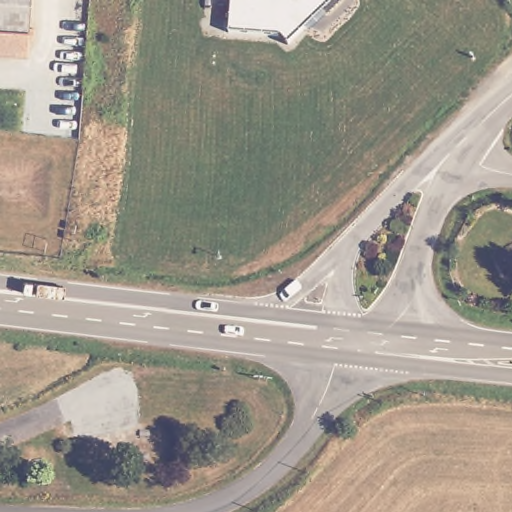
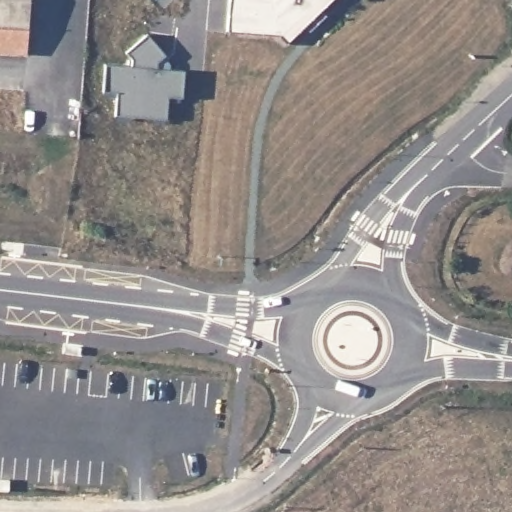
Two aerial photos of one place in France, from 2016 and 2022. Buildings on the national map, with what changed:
unchanged [(26,35),(26,52),(0,50),(0,0),(29,0),(27,25),(32,25),(31,36),(26,35)]
unchanged [(281,36),(231,31),(233,0),(329,0),(287,41),(281,36)]
new [(131,66),(131,61),(126,52),(148,34),(172,69),(184,70),(182,98),(168,97),(167,118),(114,114),(116,93),(102,92),(105,64),(131,66)]

